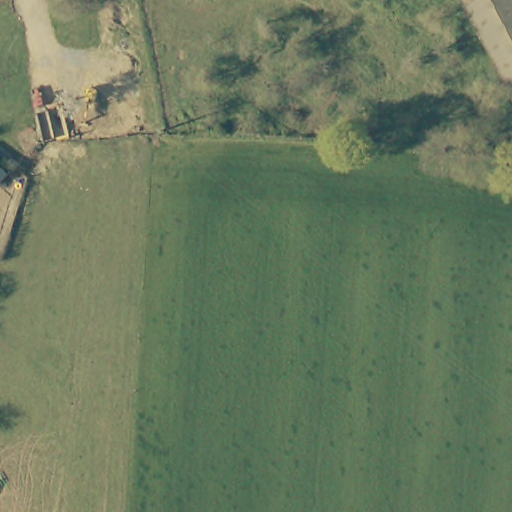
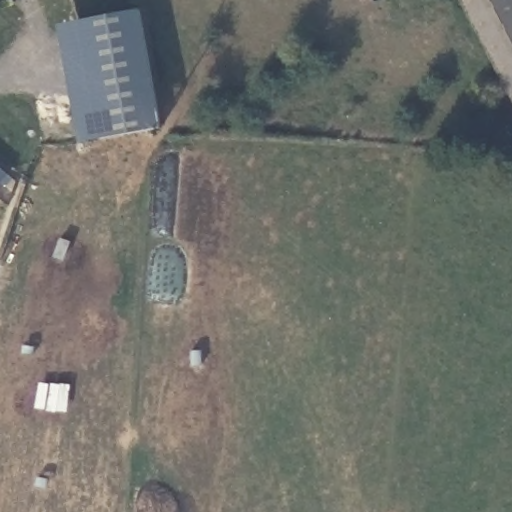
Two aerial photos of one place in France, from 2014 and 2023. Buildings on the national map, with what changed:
unchanged [(474,0),(512,0),(512,63),(474,0)]
new [(160,127),(79,142),(57,25),(140,11),(160,127)]

